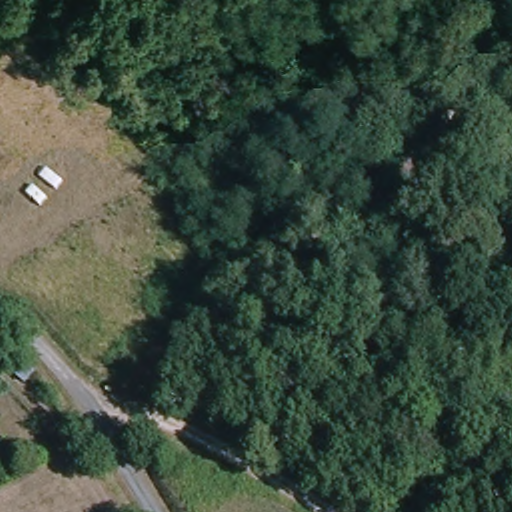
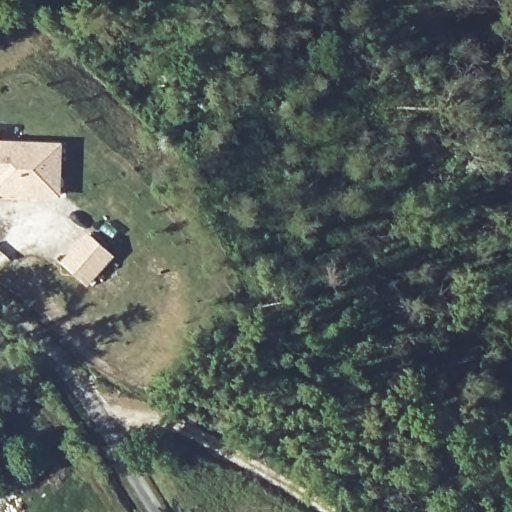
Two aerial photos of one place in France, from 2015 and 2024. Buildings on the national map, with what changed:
new [(0,132),(0,142),(64,145),(61,199),(0,196),(0,132)]
new [(115,257),(88,287),(61,263),(87,233),(115,257)]

